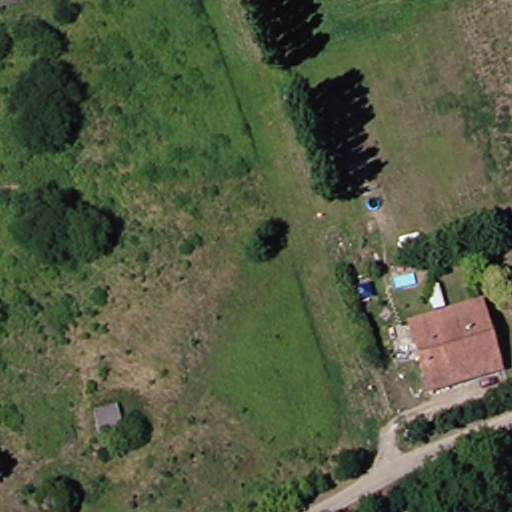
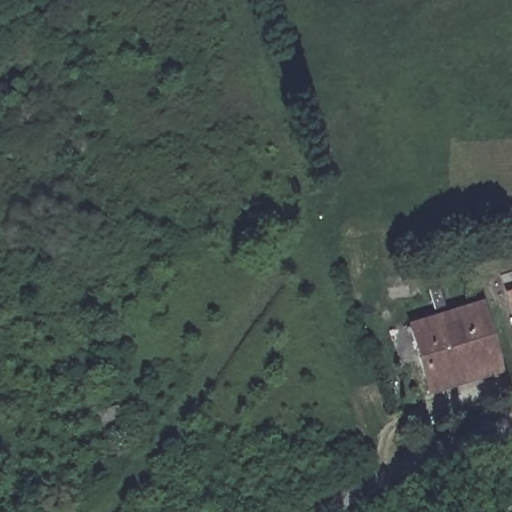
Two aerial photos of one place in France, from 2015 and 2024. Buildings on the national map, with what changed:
unchanged [(490,303),(508,371),(435,392),(416,326),(490,303)]
unchanged [(141,420),(118,427),(110,395),(131,387),(141,420)]

